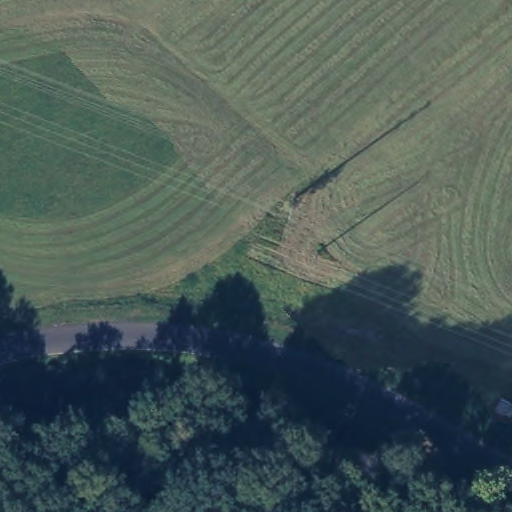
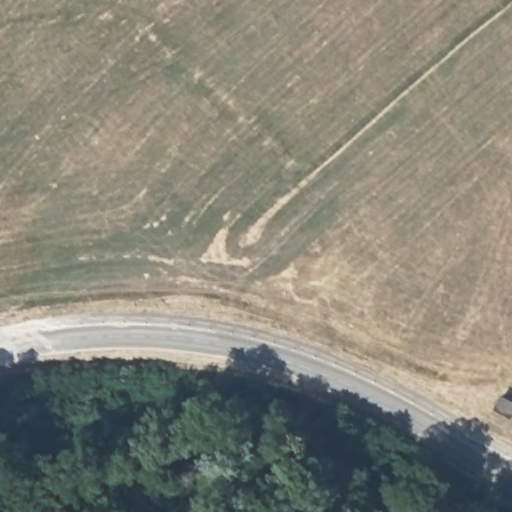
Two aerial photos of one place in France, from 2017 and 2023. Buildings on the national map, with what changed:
unchanged [(512,402),(512,410),(510,415),(495,407),(501,397),(502,396),(512,402)]

